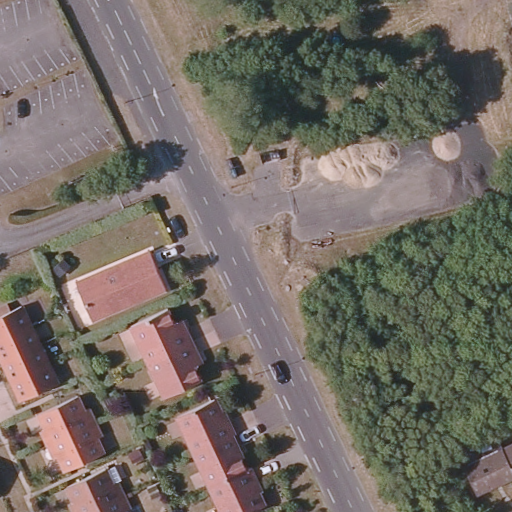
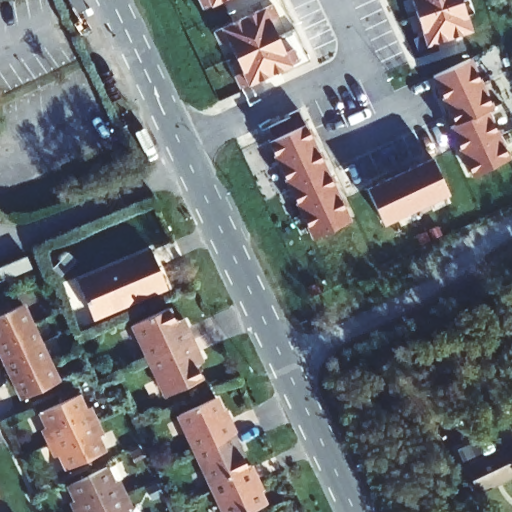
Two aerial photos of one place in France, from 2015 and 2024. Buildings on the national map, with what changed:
new [(203,9),(199,0),(224,0),(203,9)]
new [(471,30),(427,45),(411,0),(461,0),(471,30)]
new [(272,4),(278,17),(270,21),(284,52),(293,48),(299,62),(241,89),(234,75),(242,72),(228,41),(219,44),(213,31),(272,4)]
new [(469,59),(481,83),(444,100),(433,76),(469,59)]
new [(481,83),(492,107),(455,124),(444,100),(481,83)]
new [(449,126),(486,109),(498,134),(461,151),(449,126)]
new [(268,127),(286,119),(291,130),(273,139),(268,127)]
new [(268,141),(304,124),(316,147),(279,165),(268,141)]
new [(509,158),(473,175),(461,151),(498,134),(509,158)]
new [(316,147),(326,171),(291,190),(279,165),(316,147)]
new [(433,158),(449,193),(416,208),(399,174),(433,158)]
new [(338,194),(301,214),(291,190),(326,171),(338,194)]
new [(416,208),(383,223),(367,189),(399,174),(416,208)]
new [(349,221),(313,238),(301,214),(338,194),(349,221)]
unchanged [(167,285),(93,319),(75,281),(150,248),(167,285)]
unchanged [(31,324),(40,343),(49,361),(59,382),(23,399),(13,378),(4,360),(0,351),(0,316),(23,305),(31,324)]
unchanged [(159,360),(143,325),(179,308),(185,321),(193,317),(197,326),(203,340),(159,360)]
unchanged [(210,354),(214,362),(206,366),(212,379),(176,396),(159,360),(203,340),(210,354)]
unchanged [(85,409),(89,407),(96,420),(103,434),(98,436),(105,451),(86,460),(66,469),(59,454),(54,456),(48,443),(41,429),(46,427),(39,412),(59,403),(78,394),(85,409)]
unchanged [(219,398),(226,412),(232,409),(236,418),(242,430),(236,433),(199,450),(183,415),(219,398)]
unchanged [(216,485),(199,450),(236,433),(253,468),(216,485)]
unchanged [(462,459),(477,452),(481,460),(512,444),(512,476),(479,493),(462,459)]
unchanged [(115,463),(122,476),(118,478),(125,493),(131,506),(127,508),(129,512),(76,512),(70,501),(75,499),(68,485),(88,475),(106,466),(107,467),(115,463)]
unchanged [(265,478),(270,488),(264,491),(271,505),(255,512),(229,512),(216,485),(253,468),(259,465),(265,478)]

